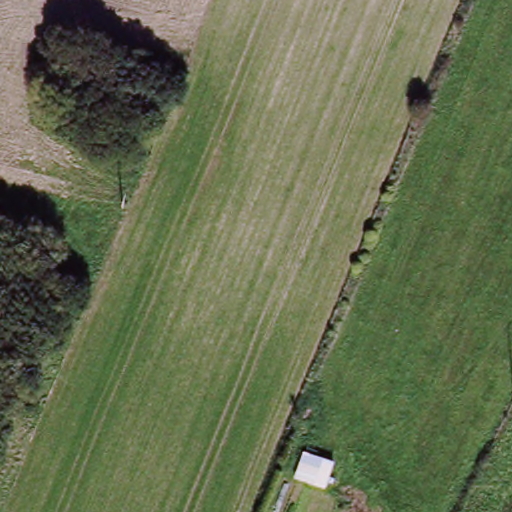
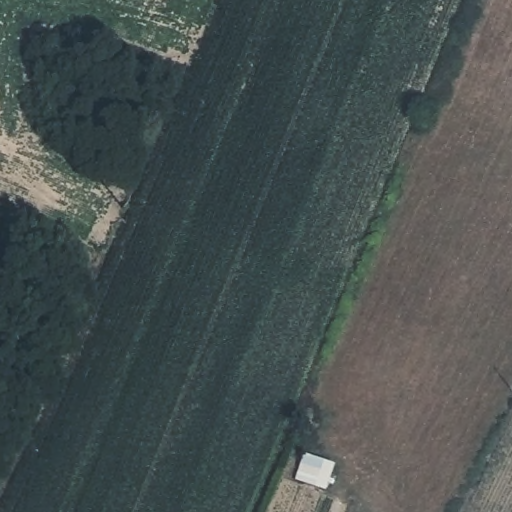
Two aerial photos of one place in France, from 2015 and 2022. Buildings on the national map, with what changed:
[]

